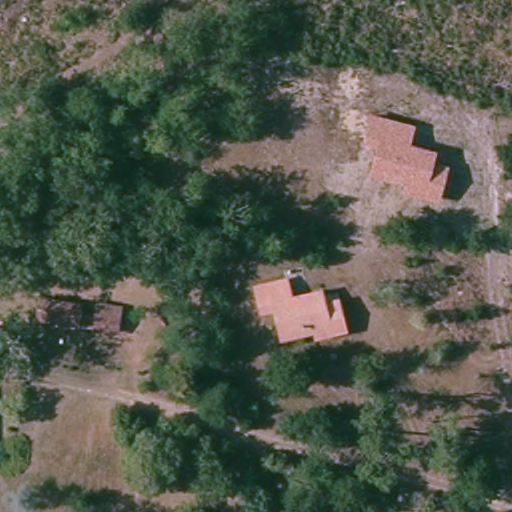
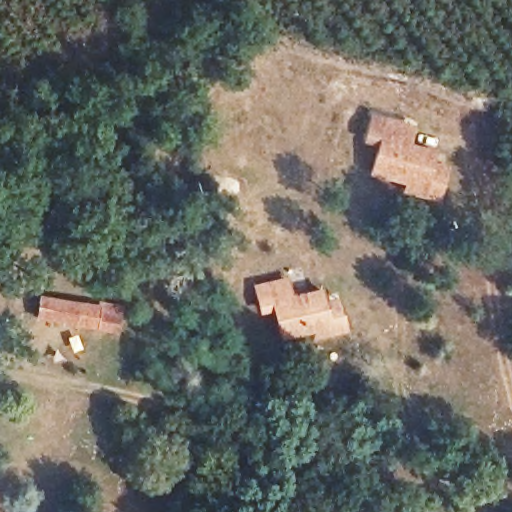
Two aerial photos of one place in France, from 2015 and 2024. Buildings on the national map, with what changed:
unchanged [(417,120),(412,143),(441,150),(439,159),(452,162),(442,199),(402,190),(405,181),(371,172),(378,144),(363,141),(370,112),(417,120)]
unchanged [(320,334),(312,336),(277,344),(267,305),(256,308),(250,285),(279,278),(283,296),(309,290),(313,308),(320,334)]
new [(102,305),(102,302),(123,305),(120,333),(37,319),(41,293),(102,305)]
demolished [(72,329),(35,322),(39,303),(76,309),(72,329)]
unchanged [(347,341),(316,350),(312,336),(320,334),(313,308),(337,303),(347,341)]
demolished [(120,337),(99,333),(102,320),(122,323),(120,337)]

